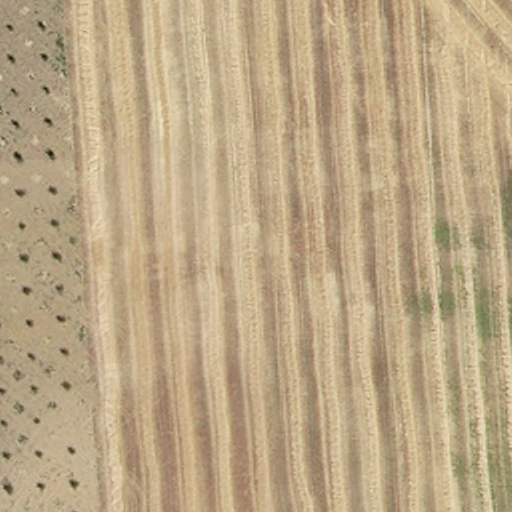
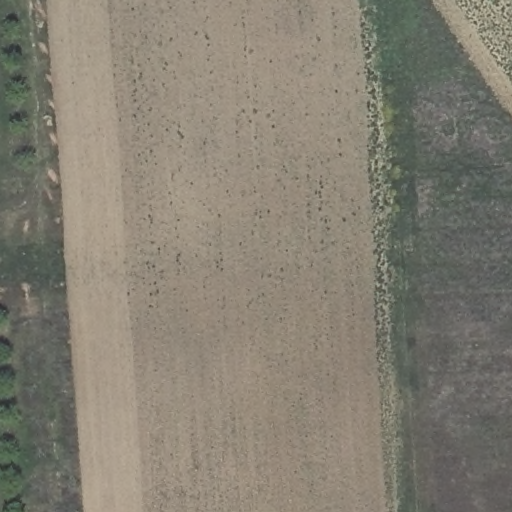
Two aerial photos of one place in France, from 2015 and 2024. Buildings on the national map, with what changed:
[]

